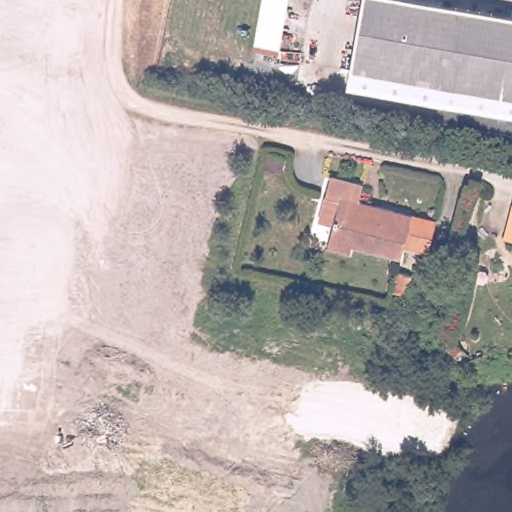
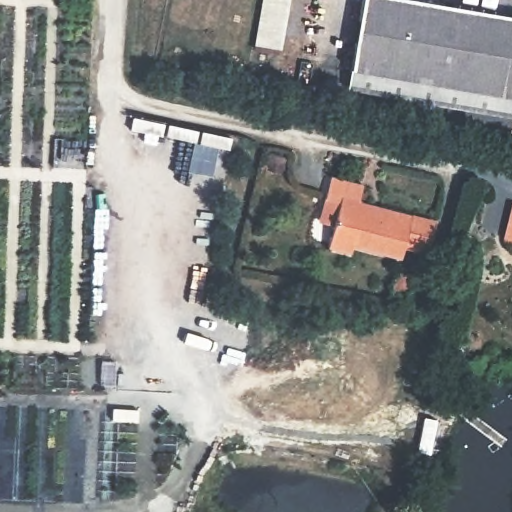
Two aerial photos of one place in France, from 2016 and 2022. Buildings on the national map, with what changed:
unchanged [(432,0),(488,9),(512,12),(512,92),(460,84),(363,70),(355,67),(366,0),(432,0)]
unchanged [(335,176),(368,183),(364,200),(416,212),(406,256),(358,245),(356,252),(333,247),(344,200),(330,197),(335,176)]

